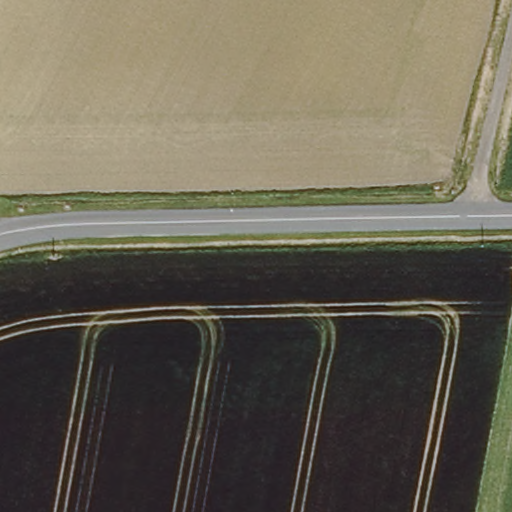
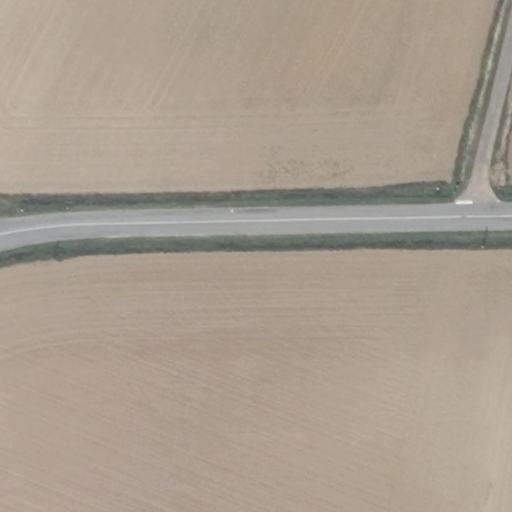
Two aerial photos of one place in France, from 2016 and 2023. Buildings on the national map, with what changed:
[]

